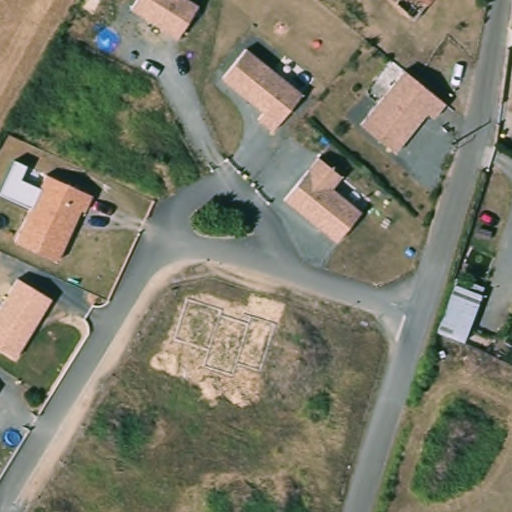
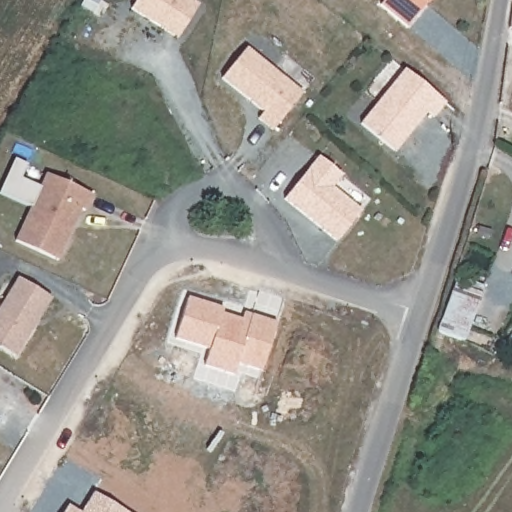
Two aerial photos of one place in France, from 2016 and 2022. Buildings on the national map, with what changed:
unchanged [(132,9),(138,0),(189,0),(199,6),(181,35),(178,39),(166,31),(132,9)]
unchanged [(383,0),(426,0),(410,20),(383,0)]
unchanged [(244,50),(301,95),(271,132),(257,120),(263,113),(221,79),(244,50)]
unchanged [(393,159),(370,139),(360,130),(400,83),(405,78),(445,111),(432,125),(426,120),(412,137),(393,159)]
unchanged [(291,191),(320,155),(343,174),(333,186),(341,192),(362,209),(338,239),(322,226),(288,199),(286,198),(291,191)]
unchanged [(55,264),(13,244),(42,179),(89,200),(81,216),(77,214),(69,233),(55,264)]
unchanged [(461,339),(434,331),(452,282),(460,284),(462,277),(480,283),(461,339)]
unchanged [(49,303),(14,362),(0,354),(0,308),(15,283),(49,303)]
new [(187,297),(223,308),(222,313),(242,319),(244,313),(276,322),(262,372),(237,363),(234,374),(203,366),(209,350),(175,339),(187,297)]

